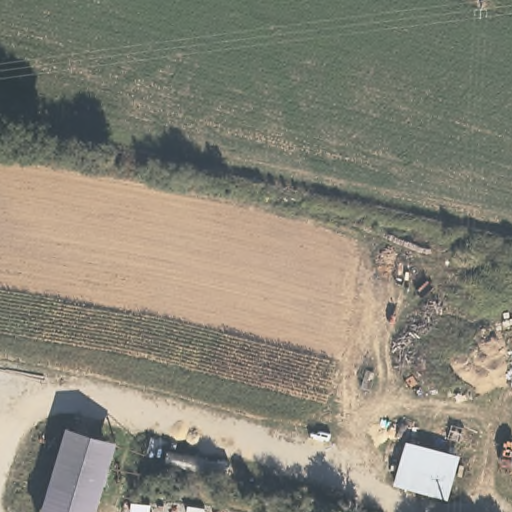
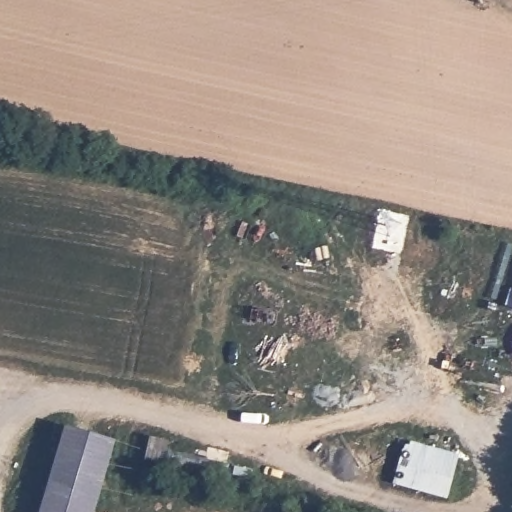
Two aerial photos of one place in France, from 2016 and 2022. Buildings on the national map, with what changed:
unchanged [(115,443),(93,512),(43,512),(70,427),(115,443)]

